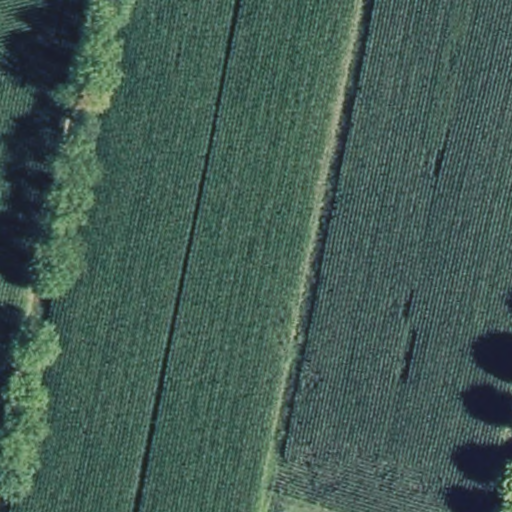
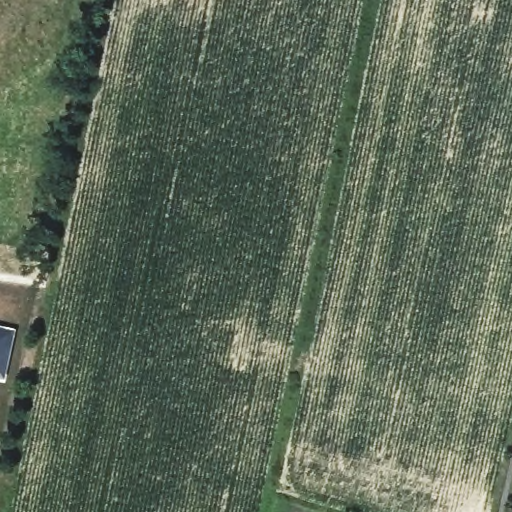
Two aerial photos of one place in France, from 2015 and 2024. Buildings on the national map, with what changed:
new [(6,381),(0,380),(0,324),(18,328),(6,381)]

